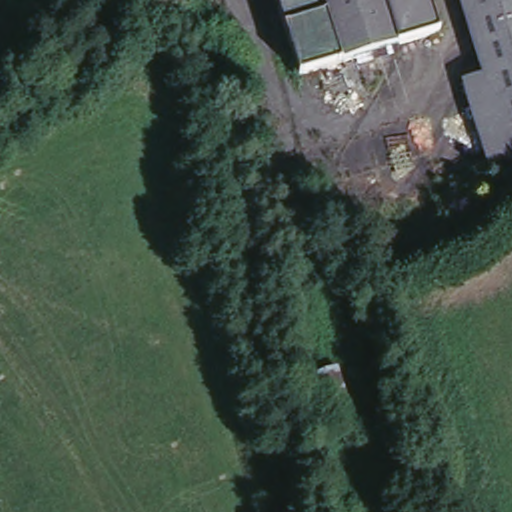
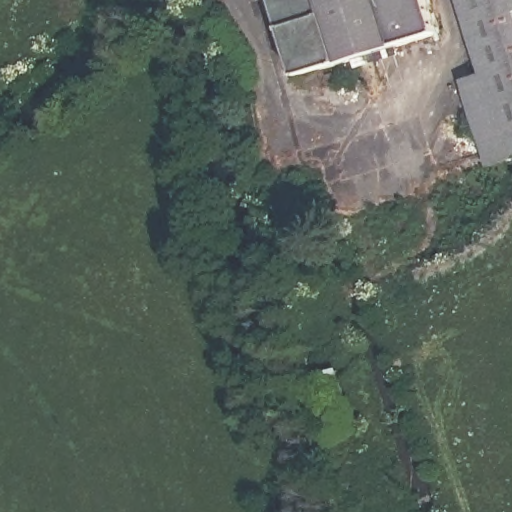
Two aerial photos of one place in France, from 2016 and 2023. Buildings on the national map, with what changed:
unchanged [(300,76),(275,0),(425,0),(436,34),(300,76)]
unchanged [(459,0),(512,0),(512,162),(483,76),(459,0)]
unchanged [(468,80),(483,76),(512,162),(512,164),(495,170),(468,80)]
unchanged [(302,388),(337,377),(353,429),(317,441),(302,388)]

